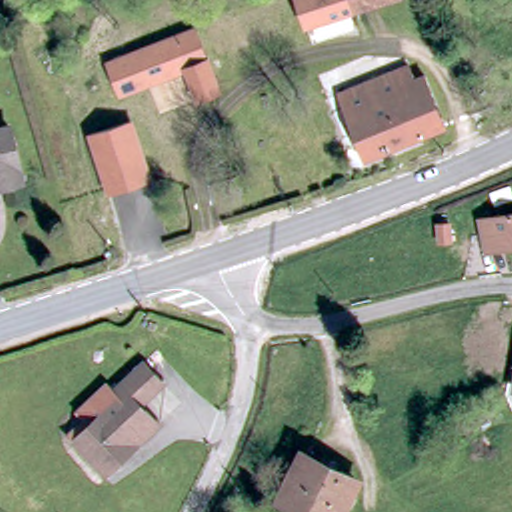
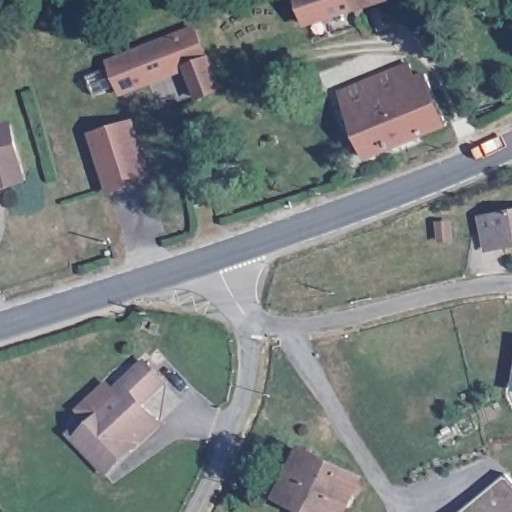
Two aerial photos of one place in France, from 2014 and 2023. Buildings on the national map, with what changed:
unchanged [(301,0),(355,0),(357,7),(308,22),(301,0)]
unchanged [(357,7),(355,0),(378,0),(357,7)]
unchanged [(202,28),(225,90),(203,99),(190,68),(129,92),(117,57),(156,44),(202,28)]
unchanged [(420,84),(430,80),(450,130),(368,160),(342,96),(415,69),(420,84)]
unchanged [(152,176),(114,190),(93,132),(130,120),(152,176)]
unchanged [(0,132),(12,129),(28,182),(0,190),(0,132)]
unchanged [(493,237),(489,217),(512,212),(512,244),(510,245),(495,248),(493,237)]
unchanged [(77,443),(83,437),(120,400),(115,395),(142,367),(163,387),(142,408),(159,426),(130,454),(108,475),(77,443)]
unchanged [(359,484),(345,512),(312,512),(283,498),(303,457),(359,484)]
new [(512,484),(512,512),(470,512),(507,479),(512,484)]

